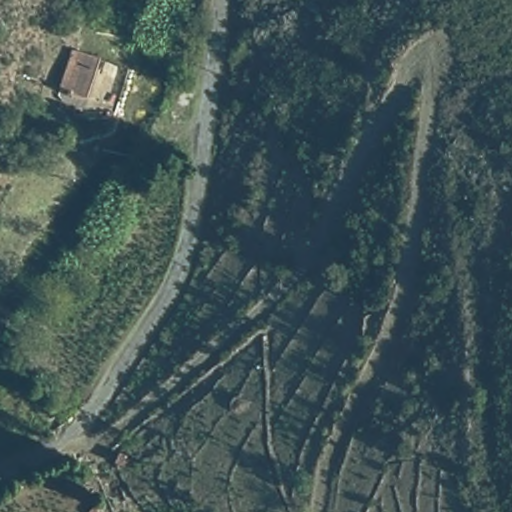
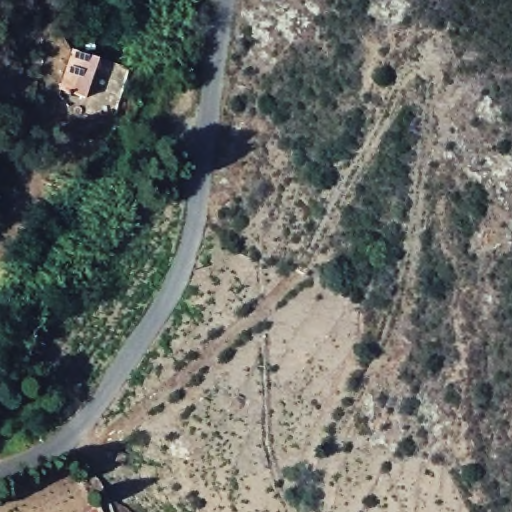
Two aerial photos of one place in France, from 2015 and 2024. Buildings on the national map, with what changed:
unchanged [(128,71),(113,120),(85,114),(87,105),(65,99),(74,51),(128,71)]

